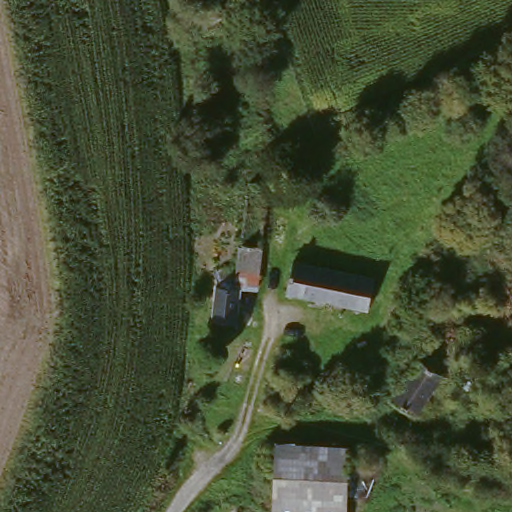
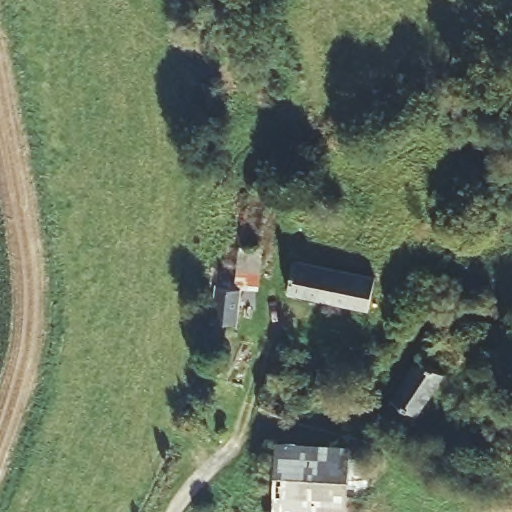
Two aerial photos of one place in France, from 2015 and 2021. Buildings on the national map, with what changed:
unchanged [(274,186),(267,250),(245,247),(252,184),(274,186)]
unchanged [(242,247),(245,247),(267,250),(262,290),(245,289),(238,288),(239,274),(242,247)]
unchanged [(295,263),(375,278),(367,310),(287,295),(295,263)]
unchanged [(219,273),(239,274),(238,288),(245,289),(240,324),(214,321),(219,273)]
unchanged [(435,341),(495,378),(481,400),(446,380),(420,363),(435,341)]
unchanged [(419,420),(392,404),(420,363),(446,380),(419,420)]
unchanged [(347,512),(272,512),(278,440),(353,447),(347,512)]

